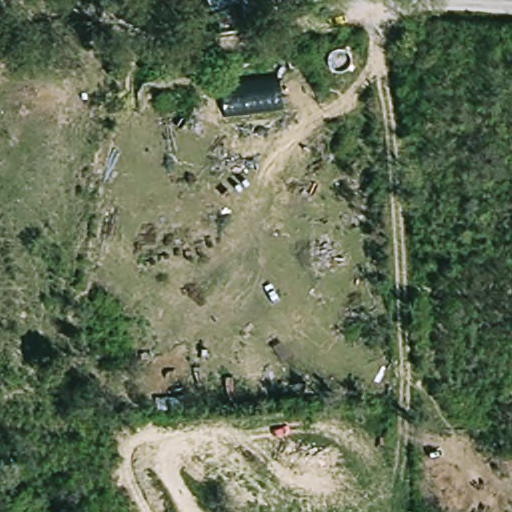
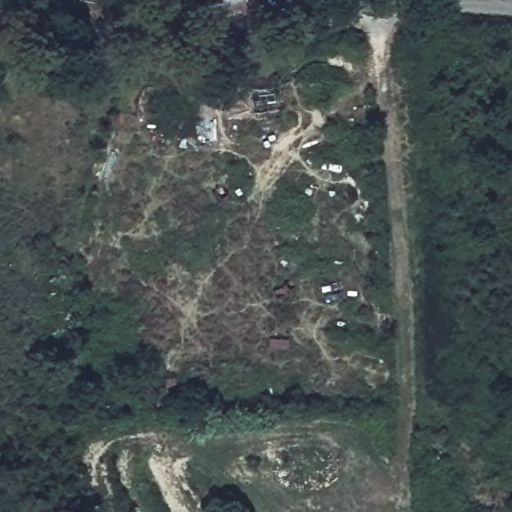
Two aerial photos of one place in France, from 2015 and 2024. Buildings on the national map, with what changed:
unchanged [(210,0),(247,0),(215,12),(210,0)]

